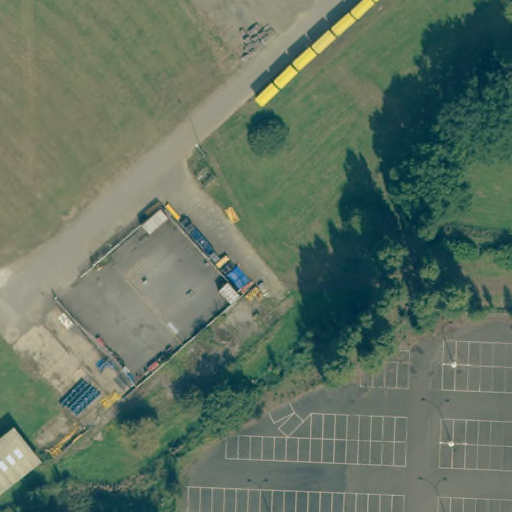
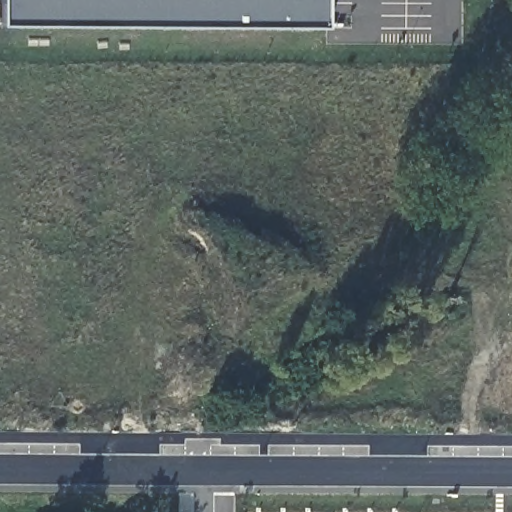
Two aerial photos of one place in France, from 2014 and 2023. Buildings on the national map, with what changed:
new [(2,0),(325,0),(325,25),(2,23),(2,0)]
demolished [(0,491),(0,440),(15,428),(40,458),(0,491)]

